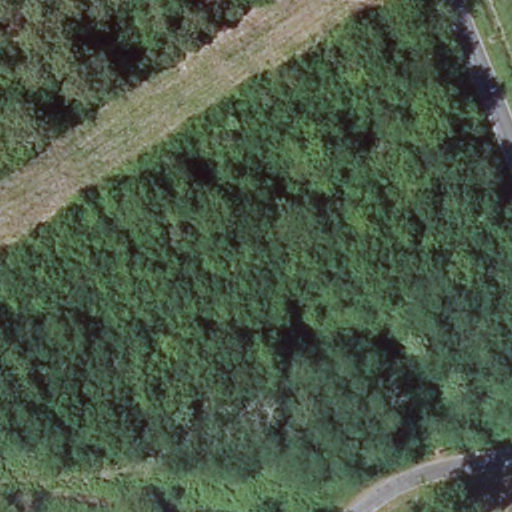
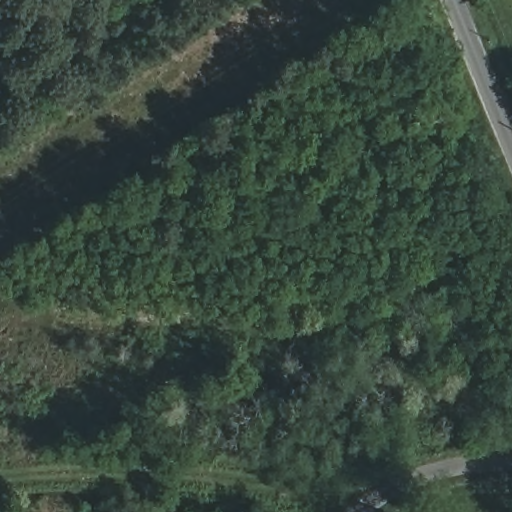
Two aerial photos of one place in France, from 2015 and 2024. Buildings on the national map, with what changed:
[]

